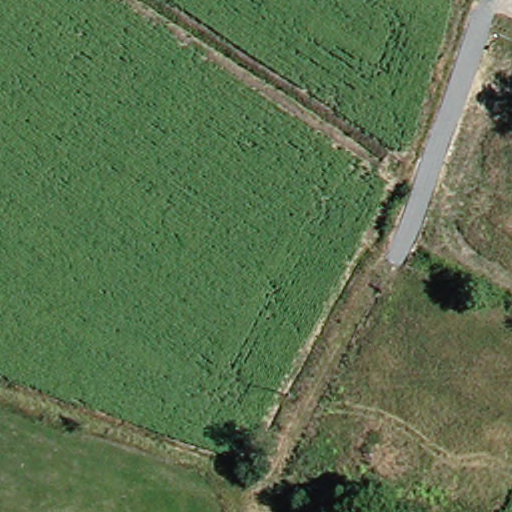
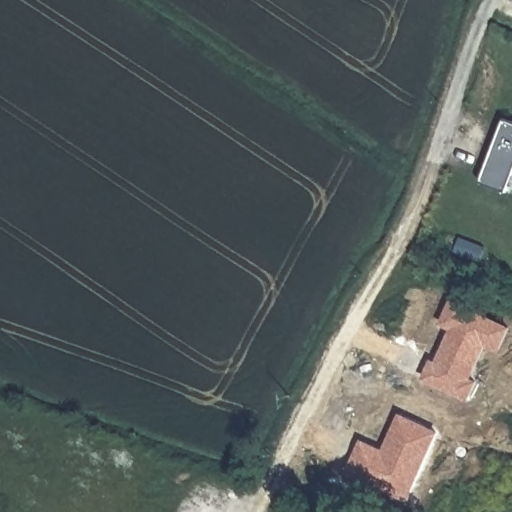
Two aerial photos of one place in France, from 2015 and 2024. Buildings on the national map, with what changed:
unchanged [(504,119),(512,122),(512,179),(507,192),(480,182),(504,119)]
new [(432,358),(438,360),(452,329),(442,323),(454,299),(512,326),(512,327),(501,351),(489,346),(474,377),(480,380),(471,400),(425,379),(432,358)]
new [(363,439),(385,448),(402,413),(441,431),(408,502),(346,474),(363,439)]

